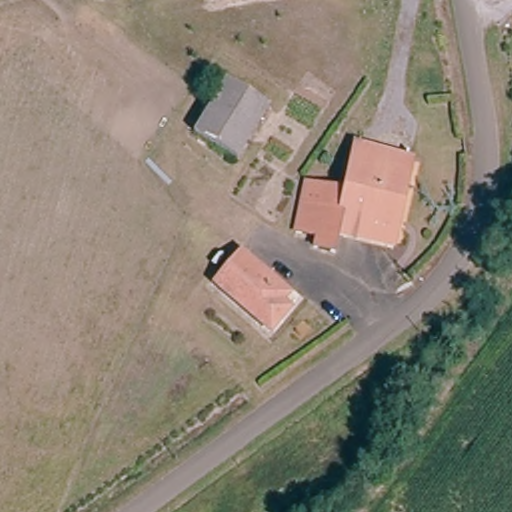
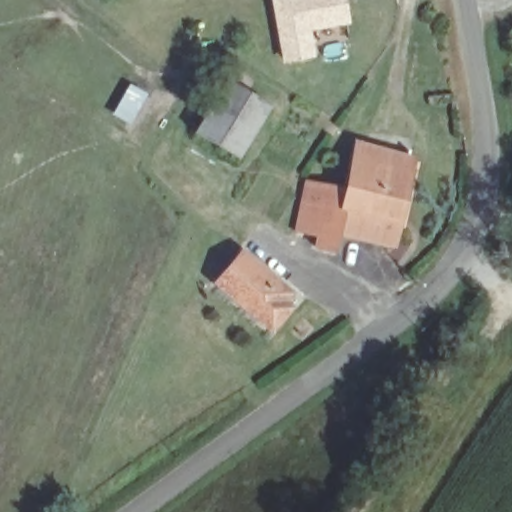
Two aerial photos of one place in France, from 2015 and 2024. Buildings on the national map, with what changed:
new [(309,32),(314,59),(281,65),(270,0),(344,0),(349,26),(309,32)]
unchanged [(264,107),(235,157),(195,131),(224,82),(264,107)]
unchanged [(340,232),(336,252),(315,247),(317,237),(296,232),(308,182),(349,192),(359,148),(414,161),(395,245),(340,232)]
unchanged [(209,285),(234,255),(280,293),(271,301),(283,310),(264,331),(209,285)]

